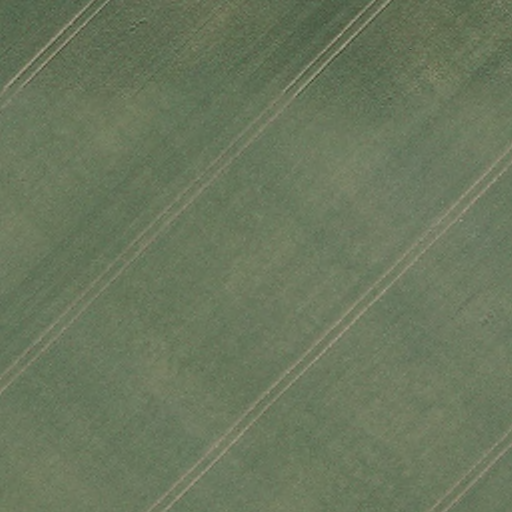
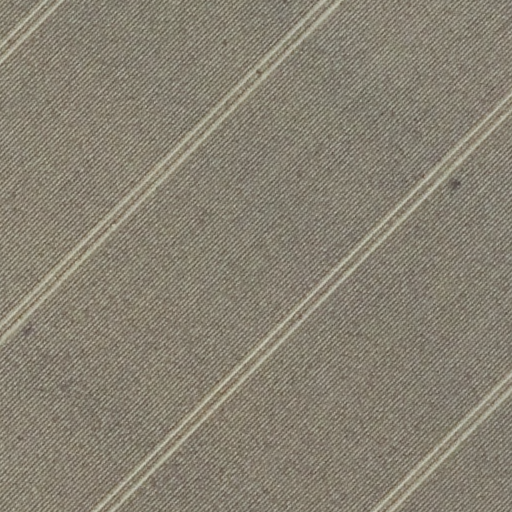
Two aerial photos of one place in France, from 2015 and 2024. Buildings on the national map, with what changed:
[]

